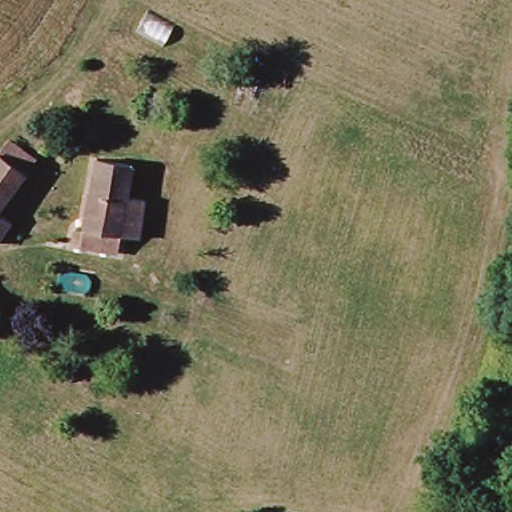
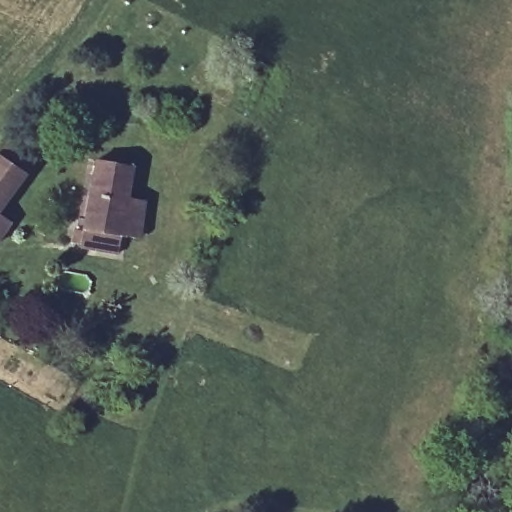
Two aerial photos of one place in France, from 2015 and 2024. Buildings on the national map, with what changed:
unchanged [(0,218),(0,151),(5,145),(35,162),(0,218)]
unchanged [(116,260),(78,253),(95,169),(134,179),(116,260)]
unchanged [(9,227),(0,242),(0,222),(9,227)]

